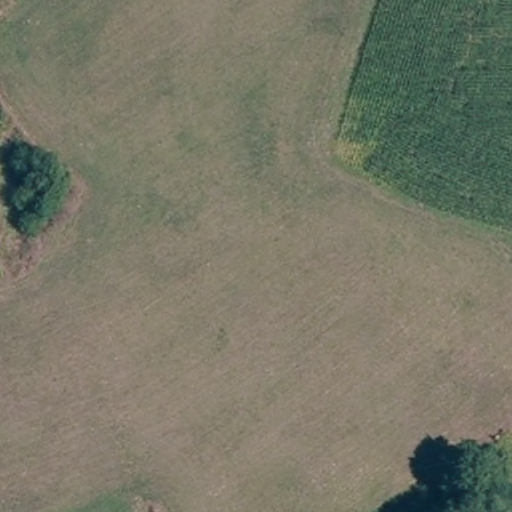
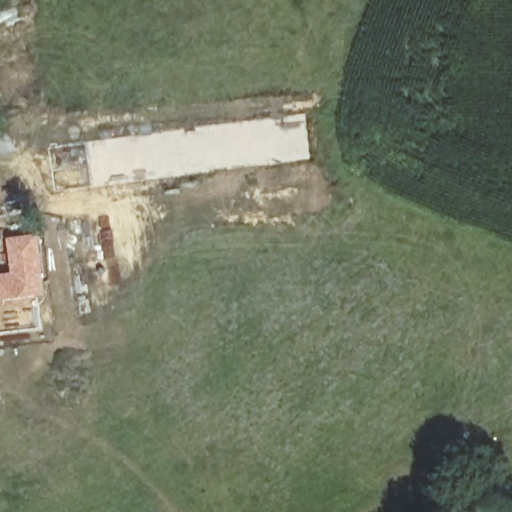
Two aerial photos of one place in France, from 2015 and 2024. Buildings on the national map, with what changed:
new [(15,272),(11,242),(40,239),(47,295),(31,285),(22,295),(0,300),(0,275),(15,272)]
unchanged [(4,267),(0,268),(0,245),(2,244),(4,267)]

